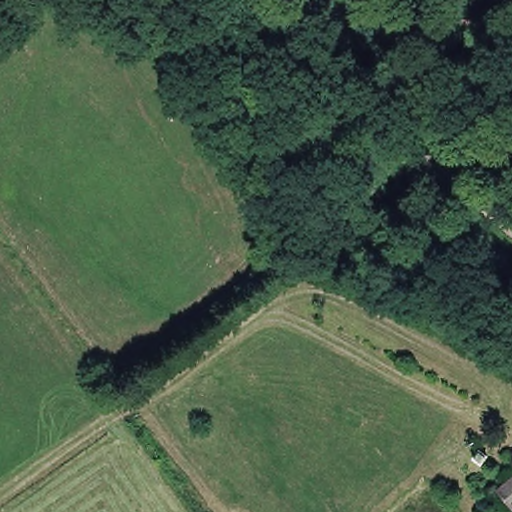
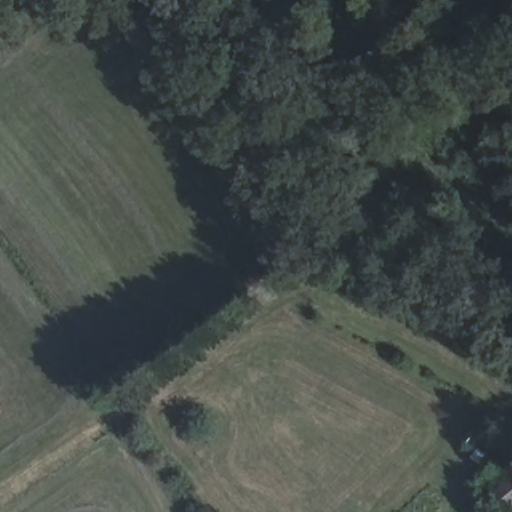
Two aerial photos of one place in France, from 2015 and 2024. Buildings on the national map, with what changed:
unchanged [(512,506),(507,509),(490,484),(512,470),(512,506)]

